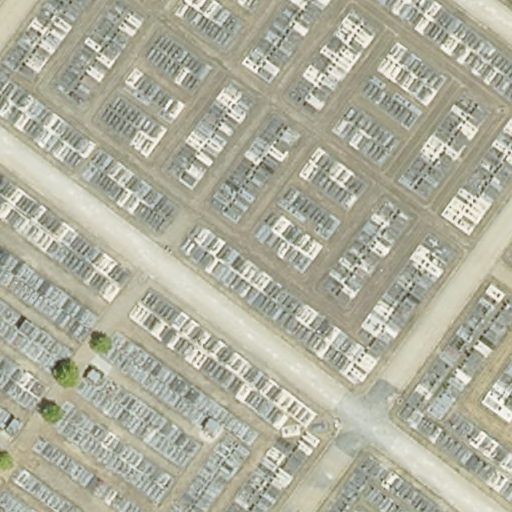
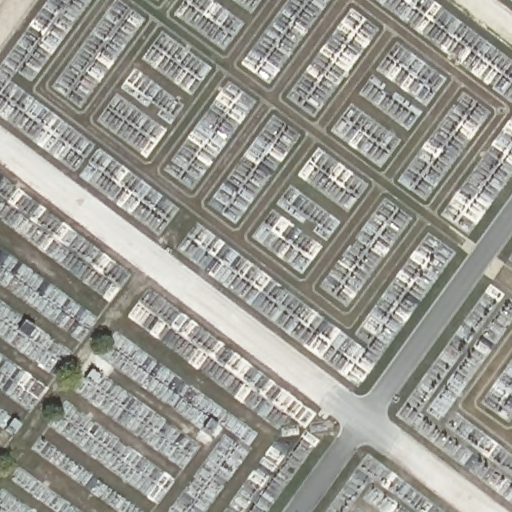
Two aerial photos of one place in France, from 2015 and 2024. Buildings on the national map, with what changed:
[]

